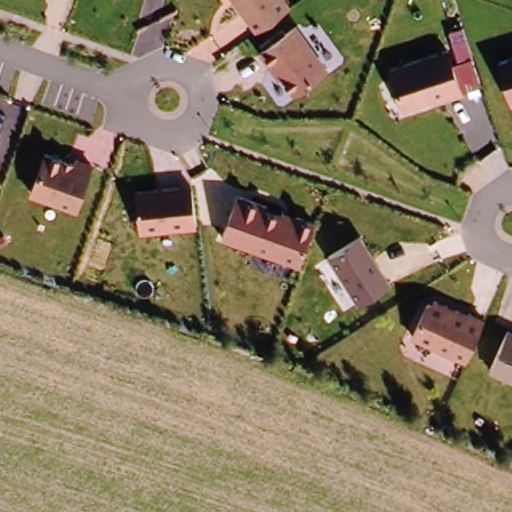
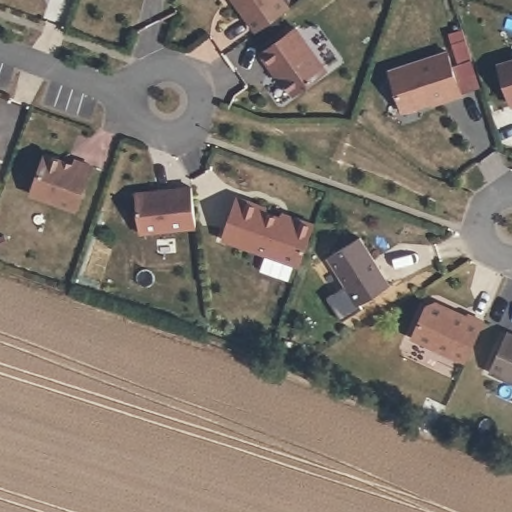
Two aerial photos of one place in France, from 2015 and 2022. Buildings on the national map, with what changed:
unchanged [(291,6),(255,31),(232,0),(287,0),(291,6)]
unchanged [(330,69),(295,96),(262,52),(297,24),(330,69)]
unchanged [(464,93),(405,111),(391,67),(449,48),(464,93)]
unchanged [(500,61),(512,57),(512,104),(500,61)]
unchanged [(0,137),(0,134),(1,134),(0,137)]
unchanged [(70,158),(72,155),(97,164),(80,212),(30,195),(47,150),(70,158)]
unchanged [(193,184),(197,228),(142,234),(137,190),(193,184)]
unchanged [(316,220),(300,267),(222,239),(237,193),(316,220)]
unchanged [(392,283),(360,304),(329,257),(362,235),(392,283)]
unchanged [(487,320),(467,363),(412,337),(427,302),(439,298),(487,320)]
unchanged [(512,330),(512,382),(490,372),(510,328),(512,330)]

